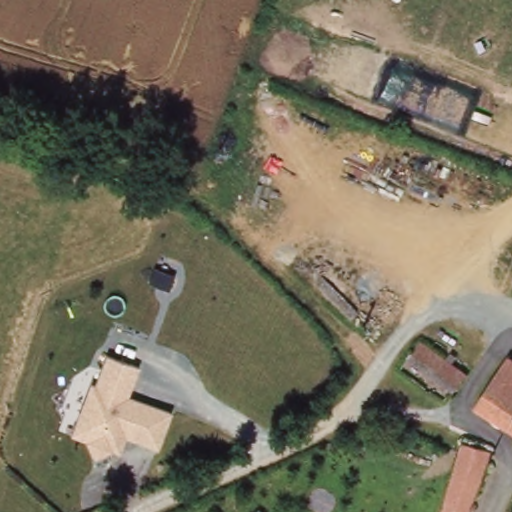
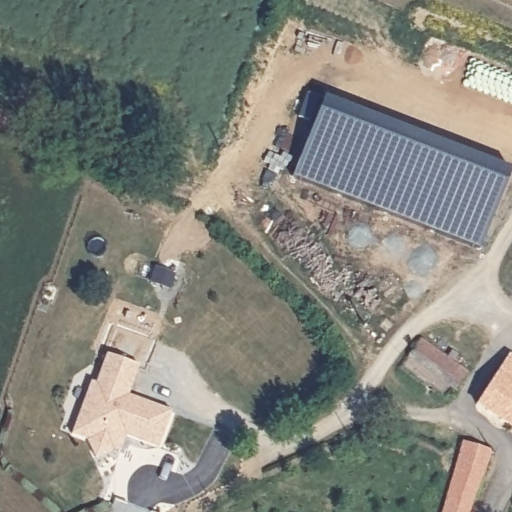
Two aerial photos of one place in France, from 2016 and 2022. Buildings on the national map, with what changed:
new [(322,96),(509,170),(478,248),(292,176),(322,96)]
unchanged [(416,337),(443,357),(446,350),(450,352),(448,358),(461,366),(442,402),(432,395),(440,382),(403,355),(416,337)]
unchanged [(86,441),(70,436),(89,381),(96,383),(105,354),(138,365),(127,397),(170,413),(159,449),(125,438),(120,453),(111,451),(93,459),(86,441)]
unchanged [(492,376),(503,358),(512,364),(512,430),(475,408),(492,376)]
unchanged [(468,512),(438,512),(452,460),(457,439),(490,450),(468,512)]

